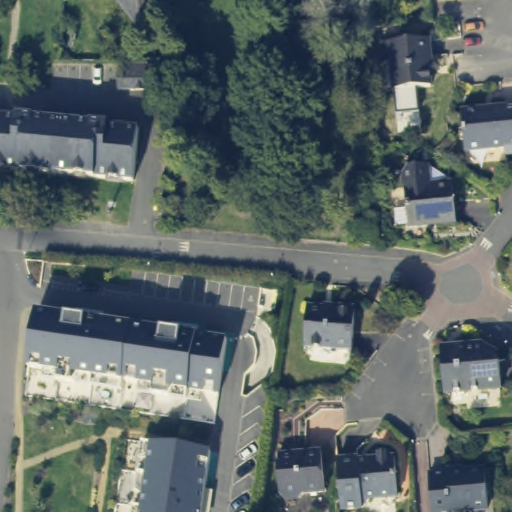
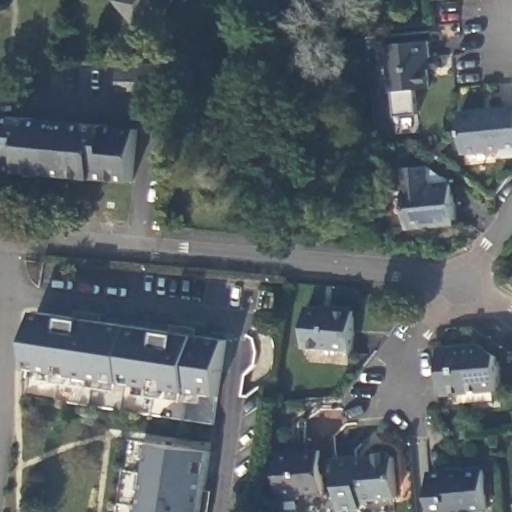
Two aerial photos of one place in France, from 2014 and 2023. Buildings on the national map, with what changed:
unchanged [(121,11),(116,2),(121,0),(134,0),(177,0),(178,1),(140,30),(121,11)]
unchanged [(433,41),(434,55),(430,60),(432,86),(398,89),(396,64),(388,65),(386,45),(433,41)]
unchanged [(170,95),(107,94),(108,67),(108,66),(137,67),(170,68),(170,95)]
unchanged [(512,108),(512,152),(497,153),(497,146),(458,150),(455,114),(512,108)]
unchanged [(129,179),(0,168),(0,116),(133,127),(129,179)]
unchanged [(402,177),(406,172),(425,170),(426,190),(447,188),(451,227),(407,231),(403,192),(402,177)]
unchanged [(347,310),(344,349),(301,345),(304,306),(347,310)]
unchanged [(83,377),(77,386),(60,383),(61,375),(31,370),(38,314),(87,320),(88,313),(105,316),(104,322),(183,334),(184,326),(200,329),(199,336),(229,340),(222,396),(195,393),(179,391),(172,399),(155,397),(156,387),(99,380),(83,377)]
unchanged [(480,348),(496,358),(497,391),(438,393),(437,349),(480,348)]
unchanged [(145,508),(146,496),(138,491),(140,473),(149,475),(153,444),(213,452),(205,512),(144,512),(145,508)]
unchanged [(387,496),(367,496),(359,505),(336,506),(332,455),(353,455),(356,456),(367,456),(374,447),(383,447),(388,455),(392,455),(394,490),(394,495),(387,496)]
unchanged [(317,450),(319,491),(299,492),(293,500),(281,501),(275,495),(273,453),(317,450)]
unchanged [(485,471),(488,511),(473,512),(437,512),(434,475),(485,471)]

